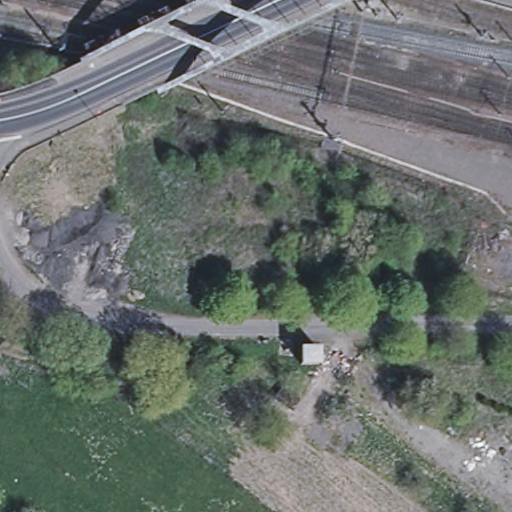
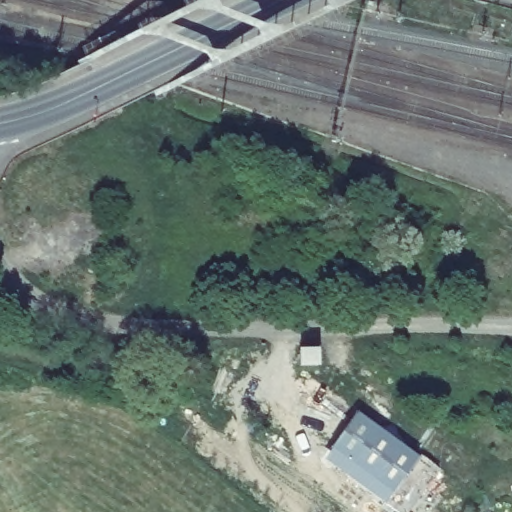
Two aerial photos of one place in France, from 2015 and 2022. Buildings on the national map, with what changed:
new [(357,413),(417,458),(386,502),(326,457),(357,413)]

